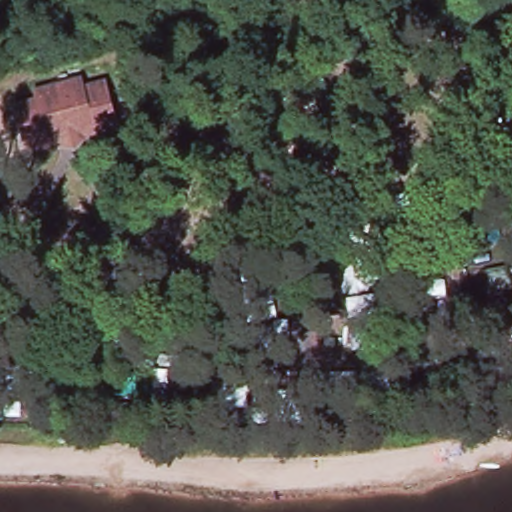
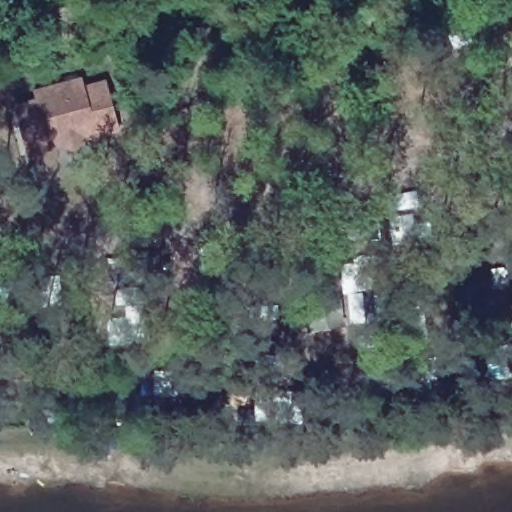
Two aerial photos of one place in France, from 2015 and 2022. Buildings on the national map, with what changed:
unchanged [(38,133),(26,136),(18,111),(44,103),(41,96),(86,83),(88,90),(109,83),(118,113),(106,116),(108,129),(43,147),(38,133)]
unchanged [(123,132),(93,141),(91,145),(89,147),(87,150),(84,152),(80,154),(75,154),(71,153),(68,152),(63,150),(33,159),(26,136),(38,133),(43,147),(108,129),(106,116),(118,113),(123,132)]

